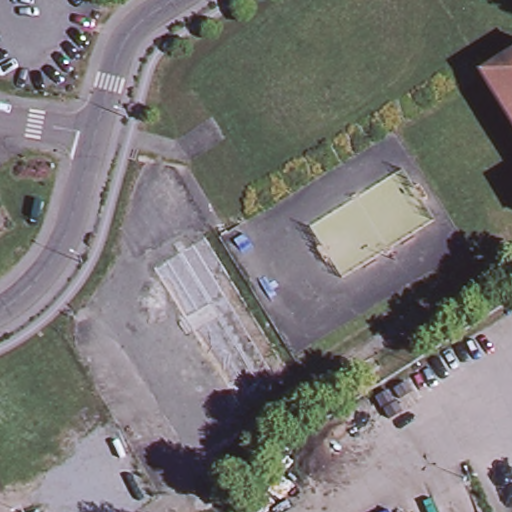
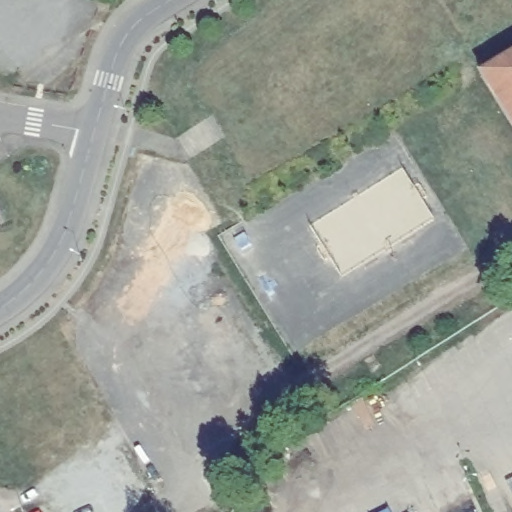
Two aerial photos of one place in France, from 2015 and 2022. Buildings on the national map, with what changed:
unchanged [(512,54),(512,126),(480,73),(512,54)]

